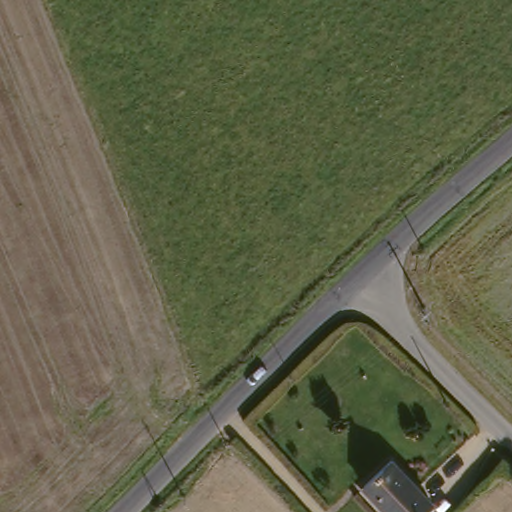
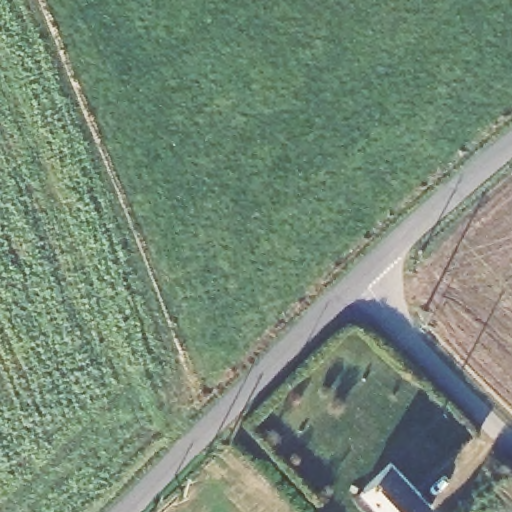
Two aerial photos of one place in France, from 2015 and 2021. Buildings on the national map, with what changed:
unchanged [(423,512),(389,512),(365,489),(392,462),(432,503),(423,512)]

